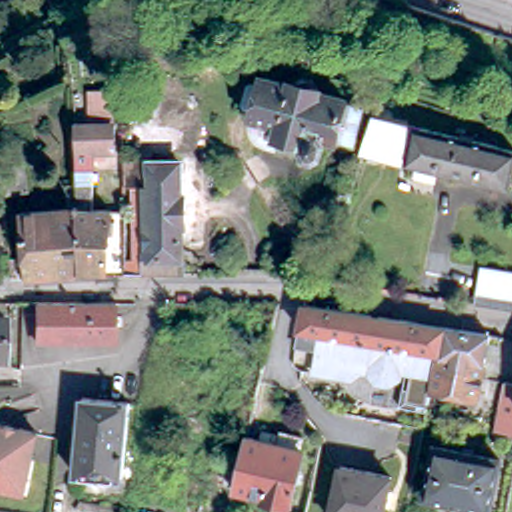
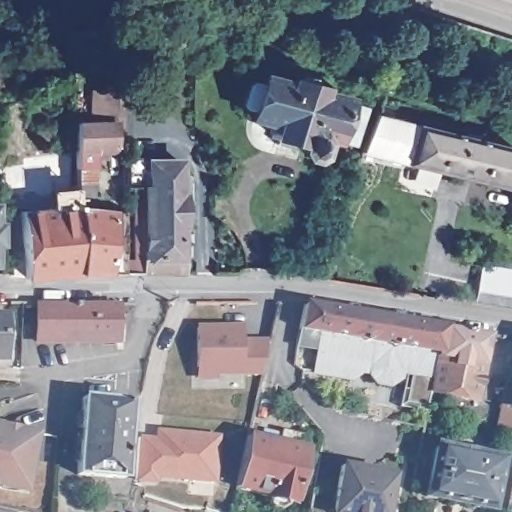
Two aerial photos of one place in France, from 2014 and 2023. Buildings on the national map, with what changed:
unchanged [(362,126),(356,125),(349,145),(326,139),(321,155),(312,159),(304,156),(302,151),(275,145),(276,136),(268,134),(269,126),(251,121),(253,112),(244,111),(241,103),(246,85),(253,85),(259,86),(260,88),(263,78),(290,86),(293,80),(299,78),(304,78),(309,80),(310,80),(316,86),(314,93),(343,100),(343,104),(361,109),(359,116),(364,118),(362,126)]
unchanged [(81,180),(78,120),(86,120),(85,90),(116,88),(118,119),(119,119),(119,148),(98,148),(98,205),(116,207),(112,271),(85,269),(81,180)]
unchanged [(512,168),(507,189),(407,164),(363,153),(374,118),(414,129),(512,151),(512,168)]
unchanged [(141,238),(140,181),(156,181),(156,158),(186,158),(186,191),(188,192),(187,222),(185,222),(186,254),(188,254),(188,270),(132,270),(131,238),(141,238)]
unchanged [(24,165),(28,192),(0,197),(0,169),(24,165)]
unchanged [(30,274),(29,272),(17,271),(14,255),(27,254),(23,209),(70,204),(69,181),(81,180),(85,269),(30,274)]
unchanged [(132,270),(112,271),(116,207),(131,207),(131,238),(132,270)]
unchanged [(481,279),(512,284),(512,312),(476,306),(481,279)]
unchanged [(399,368),(398,373),(385,382),(374,380),(366,370),(358,368),(348,376),(313,369),(316,348),(294,344),(301,301),(443,323),(432,375),(399,368)]
unchanged [(34,342),(34,304),(117,304),(115,343),(34,342)]
unchanged [(1,359),(0,359),(0,318),(2,318),(1,359)]
unchanged [(489,331),(476,393),(429,384),(432,375),(443,323),(489,331)]
new [(196,330),(239,330),(240,344),(267,344),(260,375),(214,376),(214,380),(196,379),(196,370),(196,330)]
unchanged [(133,399),(125,476),(78,472),(85,394),(133,399)]
unchanged [(263,436),(266,429),(284,432),(286,428),(307,433),(304,446),(309,448),(295,499),(292,499),(287,505),(286,505),(279,503),(273,500),(273,494),(238,486),(251,434),(263,436)]
unchanged [(8,431),(0,467),(0,429),(8,431)]
new [(154,437),(155,429),(220,435),(215,484),(156,479),(156,484),(134,482),(138,436),(154,437)]
unchanged [(1,492),(0,491),(0,467),(8,431),(31,436),(39,437),(35,456),(29,484),(16,495),(1,492)]
unchanged [(459,454),(461,448),(472,450),(472,456),(499,462),(488,512),(423,498),(433,448),(459,454)]
unchanged [(380,512),(339,512),(331,510),(344,460),(391,473),(380,512)]
unchanged [(133,510),(138,511),(142,501),(166,510),(174,512),(132,512),(133,510)]
unchanged [(13,508),(31,512),(0,512),(0,505),(13,508)]

